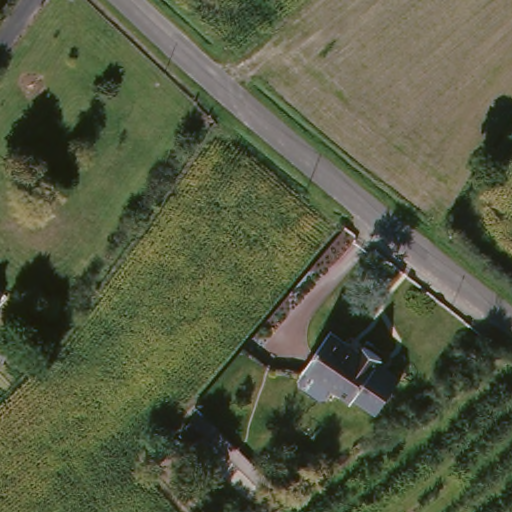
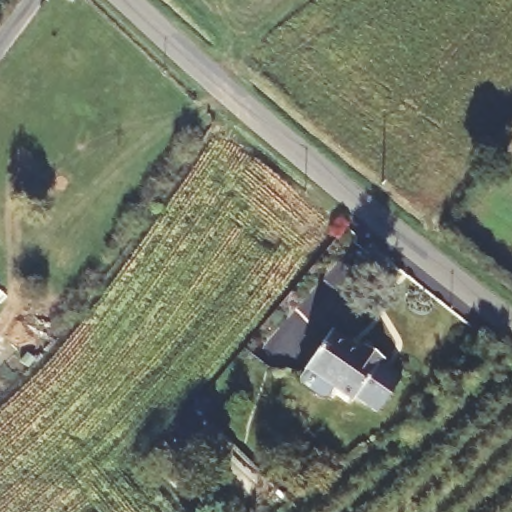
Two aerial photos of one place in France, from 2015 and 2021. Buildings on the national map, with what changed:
unchanged [(1,311),(0,312),(0,311),(1,311)]
unchanged [(370,348),(387,361),(384,366),(406,382),(380,416),(358,400),(356,403),(343,393),(337,401),(303,375),(335,332),(366,354),(370,348)]

